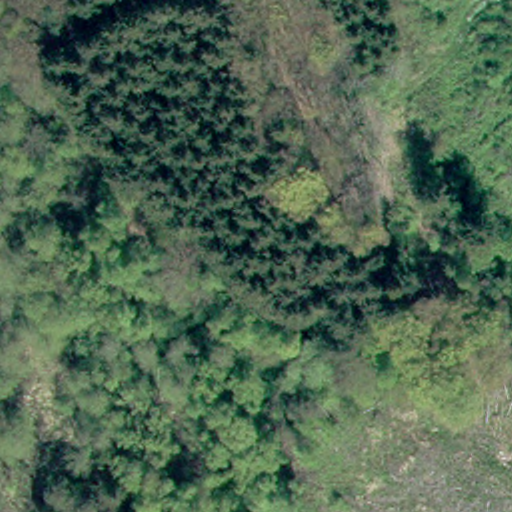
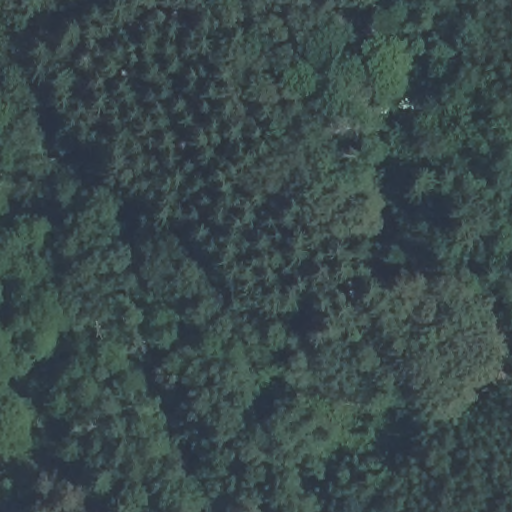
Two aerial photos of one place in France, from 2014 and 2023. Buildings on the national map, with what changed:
[]

